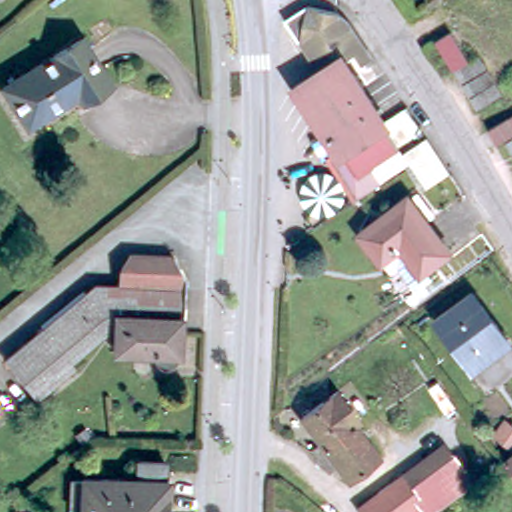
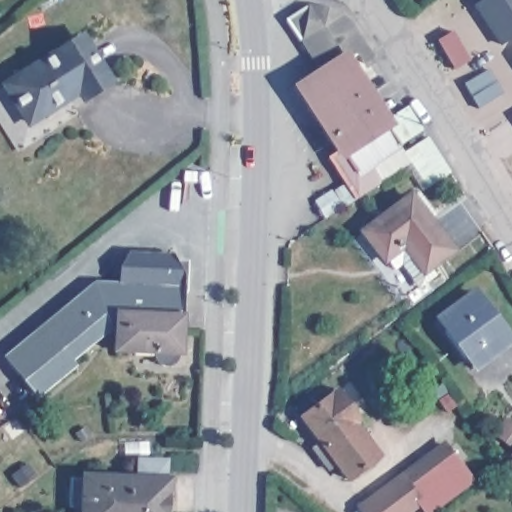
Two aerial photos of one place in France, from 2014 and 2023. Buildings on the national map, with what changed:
new [(480,0),(512,0),(512,40),(502,46),(475,3),(480,0)]
unchanged [(330,156),(340,149),(302,84),(325,71),(304,35),(293,18),(311,6),(342,14),(355,24),(375,61),(369,65),(361,53),(347,61),(354,73),(356,73),(375,104),(373,104),(385,123),(409,108),(425,132),(399,147),(409,163),(380,180),(382,182),(364,193),(356,198),(332,159),(330,156)]
unchanged [(470,57),(457,66),(440,39),(454,31),(470,57)]
unchanged [(80,39),(109,82),(83,99),(79,91),(28,122),(5,85),(80,39)]
unchanged [(465,77),(459,69),(483,53),(487,62),(465,77)]
unchanged [(472,91),(465,80),(490,64),(497,75),(472,91)]
unchanged [(481,104),(475,93),(499,78),(505,88),(481,104)]
demolished [(512,131),(499,138),(490,125),(512,112),(512,131)]
demolished [(512,134),(512,145),(507,137),(512,134)]
unchanged [(422,179),(413,165),(406,154),(430,139),(437,150),(446,164),(453,175),(429,190),(422,179)]
unchanged [(418,288),(412,280),(411,280),(400,266),(394,271),(365,234),(410,201),(410,202),(422,195),(435,215),(426,221),(449,251),(429,266),(435,274),(418,288)]
unchanged [(125,257),(132,250),(175,253),(186,275),(187,286),(122,283),(125,257)]
unchanged [(100,282),(122,283),(187,286),(186,313),(120,312),(120,325),(115,323),(72,356),(76,362),(40,392),(10,354),(100,282)]
unchanged [(477,297),(510,347),(477,370),(443,320),(477,297)]
unchanged [(185,350),(182,349),(179,358),(172,362),(161,357),(158,350),(118,348),(120,325),(120,312),(186,313),(185,350)]
unchanged [(327,466),(325,468),(319,461),(322,459),(314,449),(324,441),(305,417),(340,391),(362,421),(357,424),(380,458),(351,478),(340,464),(332,471),(327,466)]
unchanged [(419,501),(403,512),(364,512),(359,505),(421,459),(444,443),(449,450),(470,482),(450,498),(430,512),(426,512),(419,501)]
unchanged [(72,476),(83,476),(83,474),(137,476),(138,457),(165,458),(175,458),(174,477),(168,477),(166,512),(82,512),(82,503),(70,502),(72,476)]

